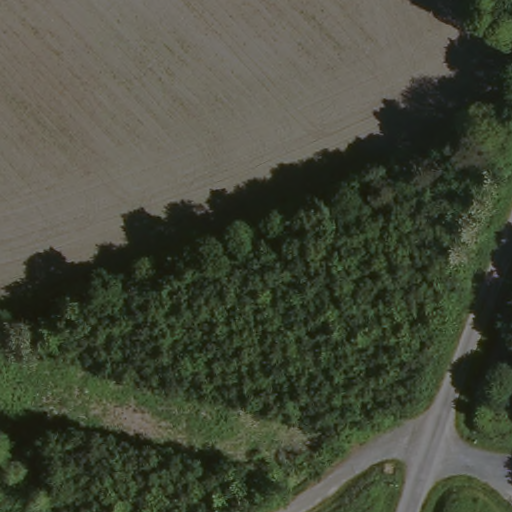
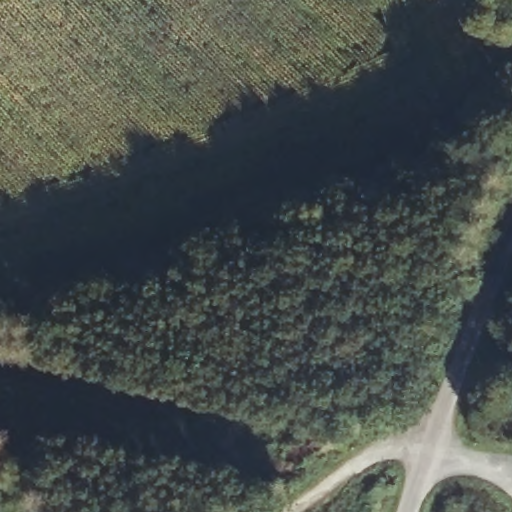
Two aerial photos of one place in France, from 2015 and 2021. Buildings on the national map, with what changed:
[]

